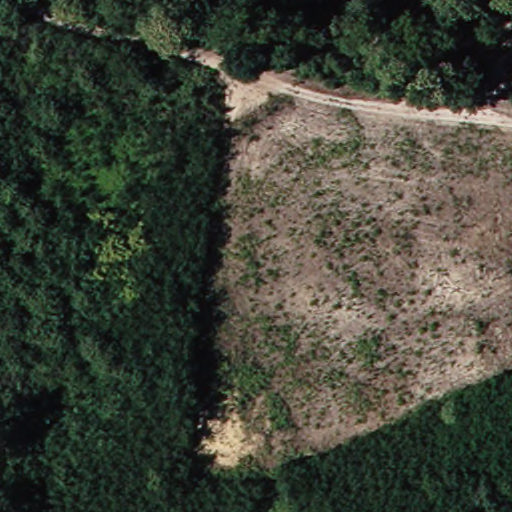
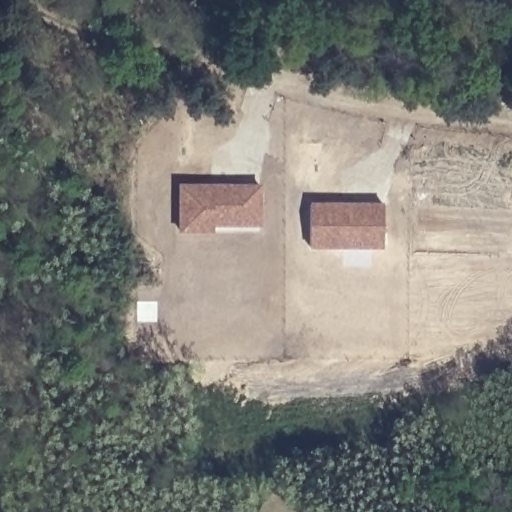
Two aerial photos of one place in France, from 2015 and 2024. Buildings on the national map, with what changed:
new [(178,184),(259,186),(260,227),(213,227),(213,234),(179,234),(178,184)]
new [(382,202),(382,251),(311,250),(311,202),(382,202)]

